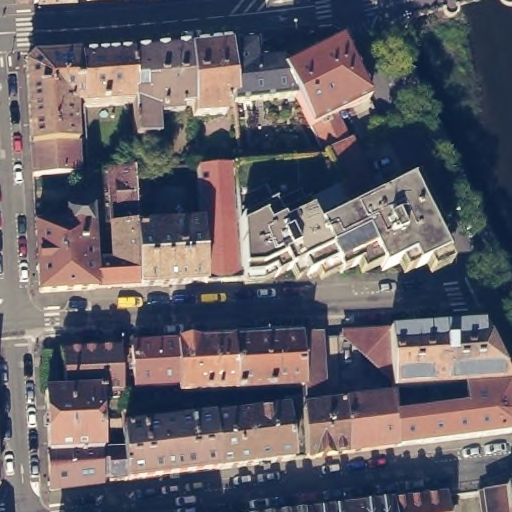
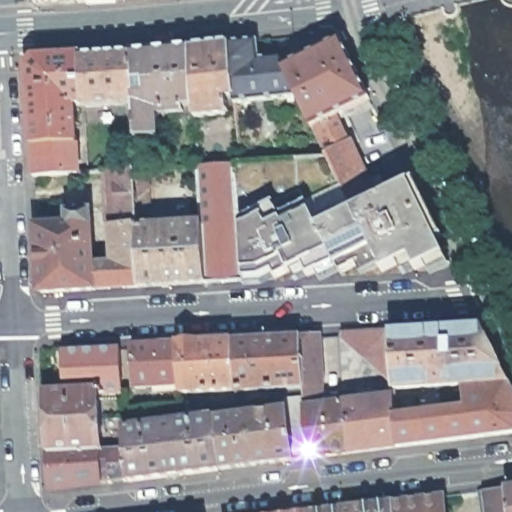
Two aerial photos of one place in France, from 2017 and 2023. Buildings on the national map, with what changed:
unchanged [(341,115),(355,142),(356,141),(381,199),(378,201),(357,211),(332,157),(331,157),(329,154),(330,153),(323,139),(318,127),(302,96),(288,67),(346,40),(375,99),(341,115)]
unchanged [(240,95),(235,44),(263,41),(265,60),(283,57),(286,63),(288,67),(302,96),(240,102),(240,95)]
unchanged [(199,117),(198,105),(196,47),(225,44),(235,44),(240,95),(233,96),(234,111),(230,115),(200,117),(199,117)]
unchanged [(187,48),(196,47),(198,105),(189,106),(190,112),(168,113),(167,108),(160,109),(162,138),(140,139),(138,103),(136,52),(187,48)]
unchanged [(125,54),(136,52),(138,103),(88,106),(86,56),(125,54)]
unchanged [(32,67),(39,59),(86,56),(88,106),(80,106),(84,174),(38,177),(32,67)]
unchanged [(240,163),(247,162),(331,157),(332,157),(357,211),(378,201),(381,199),(414,182),(450,256),(421,270),(415,258),(388,272),(381,256),(345,273),(340,262),(313,276),(307,265),(281,278),(278,272),(267,277),(248,278),(240,163)]
unchanged [(210,283),(206,225),(201,165),(202,165),(240,163),(248,278),(249,281),(210,283)]
unchanged [(142,168),(153,167),(156,217),(142,217),(142,225),(115,227),(115,224),(112,224),(112,209),(113,170),(140,169),(142,168)]
unchanged [(75,226),(73,215),(75,214),(94,212),(96,214),(95,258),(100,290),(46,292),(45,291),(41,227),(75,226)]
unchanged [(100,290),(95,258),(115,258),(115,227),(142,225),(143,229),(145,287),(100,290)]
unchanged [(145,287),(143,229),(206,225),(210,283),(145,287)]
unchanged [(393,405),(395,405),(395,398),(416,395),(420,416),(443,412),(439,387),(393,388),(392,388),(390,358),(389,332),(481,326),(512,388),(512,433),(396,447),(393,405)]
unchanged [(387,333),(390,380),(340,336),(387,333)]
unchanged [(322,382),(321,398),(304,400),(303,397),(303,387),(300,337),(320,336),(322,382)]
unchanged [(303,387),(235,391),(235,390),(233,341),(300,337),(303,387)]
unchanged [(180,393),(180,385),(177,344),(186,343),(233,341),(235,390),(180,393)]
unchanged [(180,385),(135,387),(135,376),(121,377),(120,347),(177,344),(180,385)]
unchanged [(121,377),(123,392),(100,394),(98,394),(98,393),(65,394),(65,393),(63,350),(109,348),(120,347),(121,377)]
unchanged [(48,454),(45,394),(65,393),(65,394),(98,393),(98,394),(100,394),(100,406),(102,448),(48,454)]
unchanged [(220,470),(213,420),(251,415),(251,410),(259,408),(260,413),(286,411),(285,406),(285,398),(303,397),(304,400),(305,409),(306,458),(220,470)]
unchanged [(319,457),(306,458),(305,409),(320,407),(330,406),(334,406),(345,404),(395,398),(395,405),(393,405),(396,447),(319,457)]
unchanged [(110,448),(125,447),(123,413),(139,412),(141,422),(131,422),(131,428),(213,418),(213,420),(220,470),(126,481),(113,482),(110,448)]
unchanged [(50,490),(48,454),(102,448),(102,453),(97,453),(101,484),(50,490)]
unchanged [(510,483),(512,483),(512,512),(488,512),(484,487),(510,483)]
unchanged [(399,512),(396,497),(408,496),(448,492),(451,512),(399,512)]
unchanged [(399,512),(315,512),(315,507),(396,497),(399,512)]
unchanged [(315,512),(279,512),(315,507),(315,512)]

